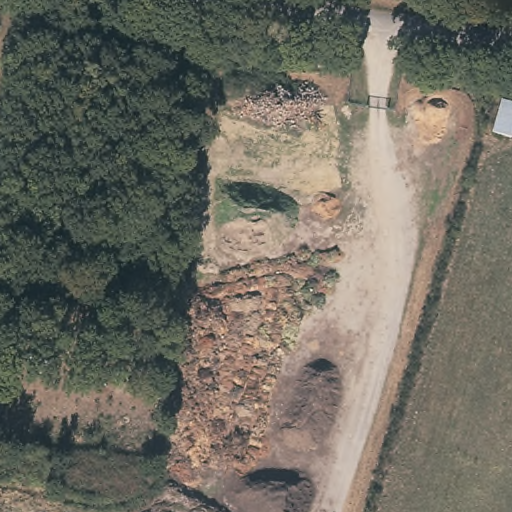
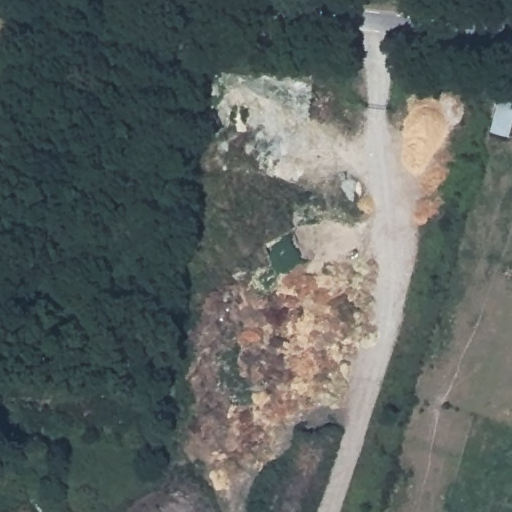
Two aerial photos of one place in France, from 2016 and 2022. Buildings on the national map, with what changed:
unchanged [(12,457),(0,456),(0,427),(15,428),(12,457)]

